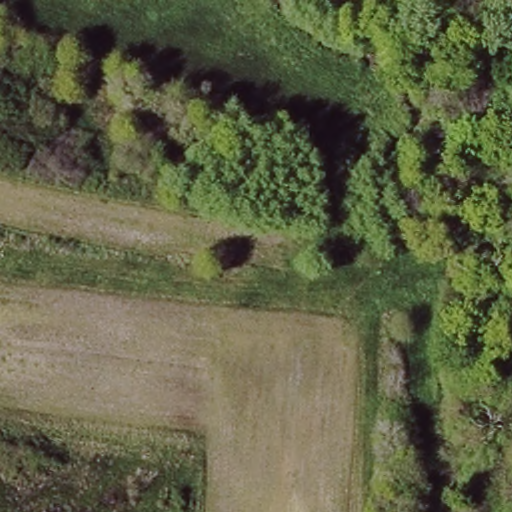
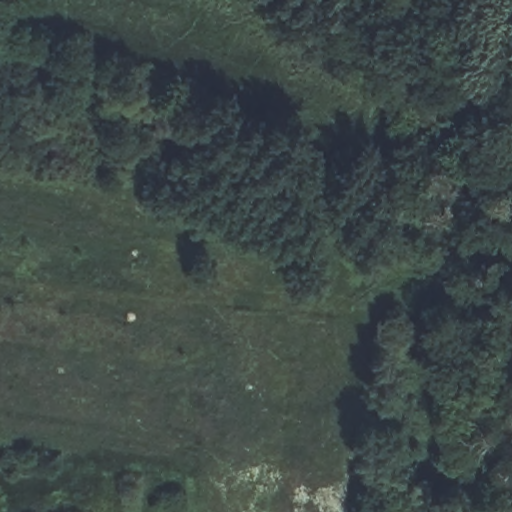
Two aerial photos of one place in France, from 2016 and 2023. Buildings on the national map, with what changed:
[]

